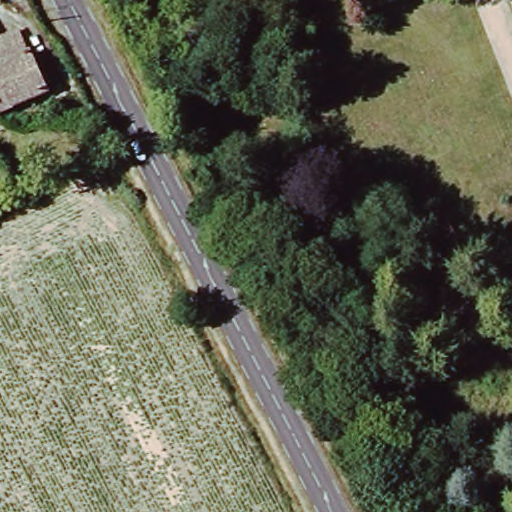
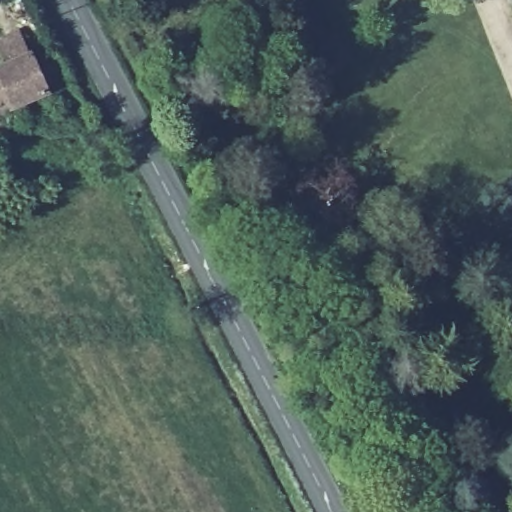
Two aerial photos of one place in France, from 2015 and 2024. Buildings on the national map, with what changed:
unchanged [(512,0),(512,10),(509,0),(512,0)]
unchanged [(0,116),(0,72),(2,70),(0,61),(0,41),(16,34),(27,59),(43,97),(0,116)]

